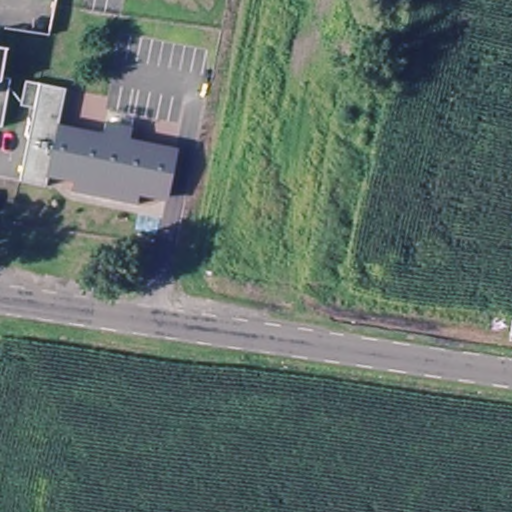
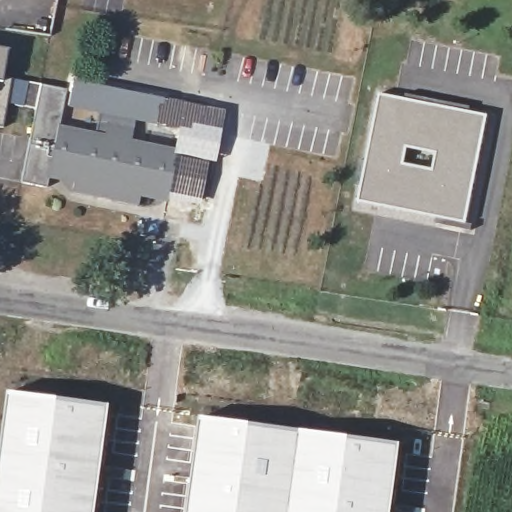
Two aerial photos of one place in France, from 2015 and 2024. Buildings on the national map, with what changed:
unchanged [(0,80),(0,55),(6,56),(0,80)]
new [(110,124),(107,137),(93,134),(97,112),(69,106),(73,80),(170,99),(164,126),(133,120),(134,129),(110,124)]
unchanged [(62,127),(107,137),(110,124),(137,129),(134,142),(180,153),(171,197),(144,191),(141,201),(122,197),(121,200),(94,194),(95,191),(75,186),(77,177),(52,171),(49,186),(23,180),(27,163),(37,117),(24,114),(29,89),(42,92),(43,91),(45,83),(71,89),(62,127)]
unchanged [(0,125),(0,84),(9,86),(0,125)]
new [(360,201),(382,94),(403,100),(406,93),(471,106),(470,112),(487,114),(467,223),(474,225),(472,231),(437,223),(438,217),(360,201)]
new [(226,110),(216,162),(209,161),(200,205),(170,201),(171,197),(180,153),(173,151),(177,130),(164,126),(170,99),(226,110)]
new [(112,404),(99,512),(0,512),(0,475),(12,391),(112,404)]
new [(402,442),(394,512),(190,512),(203,416),(402,442)]

